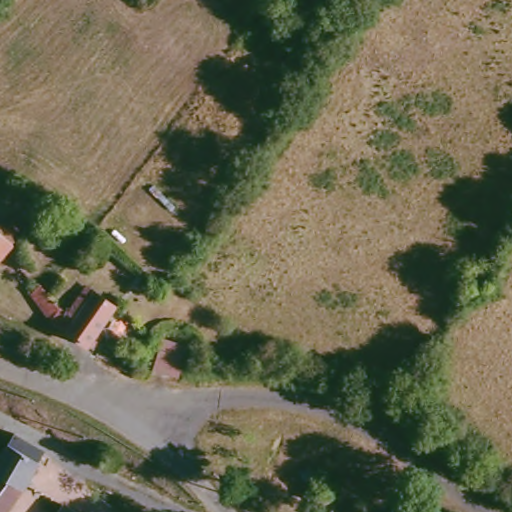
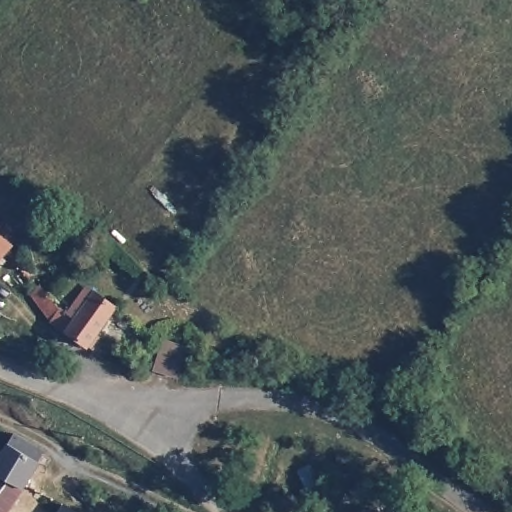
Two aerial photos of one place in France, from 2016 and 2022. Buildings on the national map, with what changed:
unchanged [(7,220),(23,236),(15,244),(0,262),(0,226),(7,220)]
unchanged [(118,305),(90,343),(70,329),(54,317),(35,293),(44,281),(66,302),(80,316),(100,290),(118,305)]
unchanged [(185,330),(217,352),(202,371),(171,350),(185,330)]
unchanged [(35,465),(38,468),(10,512),(0,512),(0,462),(21,433),(48,447),(35,465)]
unchanged [(73,503),(86,512),(67,512),(73,503)]
unchanged [(374,505),(380,512),(366,512),(374,505)]

